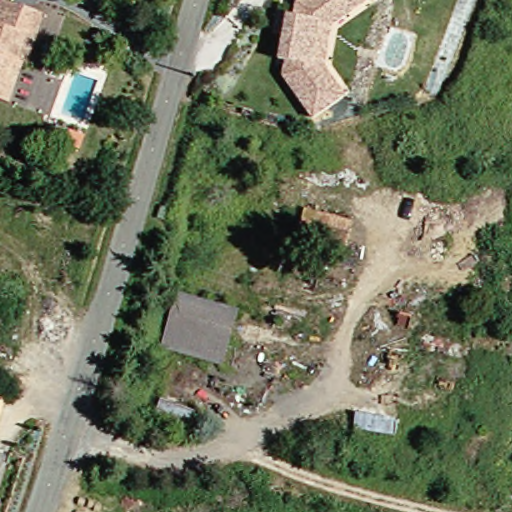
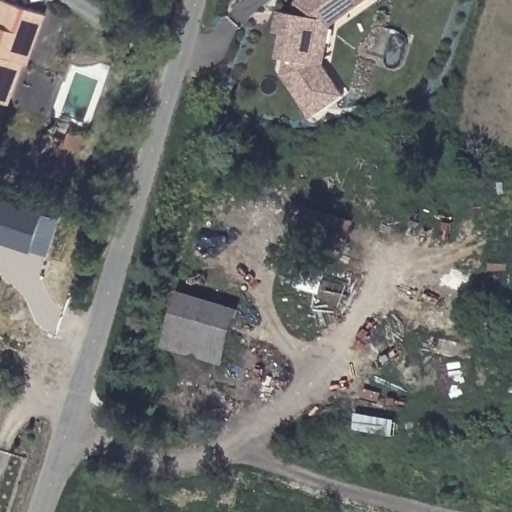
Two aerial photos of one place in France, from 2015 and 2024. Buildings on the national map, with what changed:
unchanged [(0,95),(0,21),(8,0),(14,0),(49,12),(40,35),(15,101),(9,99),(0,95)]
unchanged [(305,0),(373,0),(330,32),(322,70),(345,102),(313,125),(281,81),(285,66),(278,65),(282,40),(272,39),(275,17),(285,19),(292,20),(294,7),(305,0)]
new [(61,217),(47,254),(33,249),(31,251),(0,241),(0,197),(45,212),(61,217)]
unchanged [(291,246),(300,212),(349,225),(340,258),(291,246)]
unchanged [(237,315),(226,356),(171,340),(182,300),(237,315)]
unchanged [(0,415),(0,395),(6,397),(0,415)]

